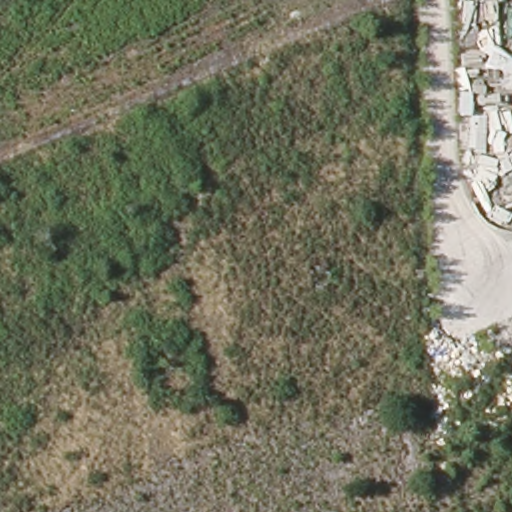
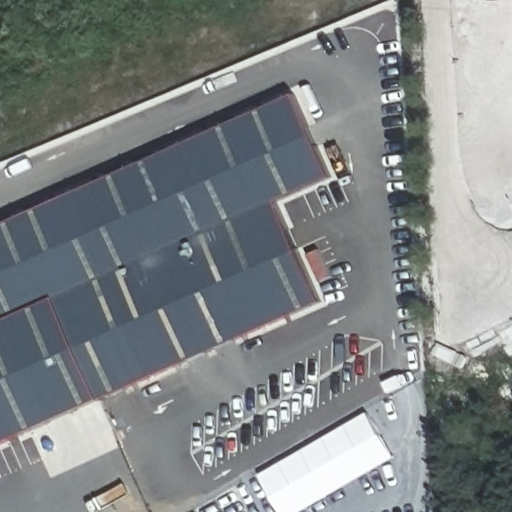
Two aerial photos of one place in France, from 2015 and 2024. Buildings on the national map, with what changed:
new [(289,96),(329,179),(274,203),(320,300),(0,445),(0,226),(289,96)]
new [(302,512),(282,512),(260,475),(367,412),(394,458),(302,512)]

